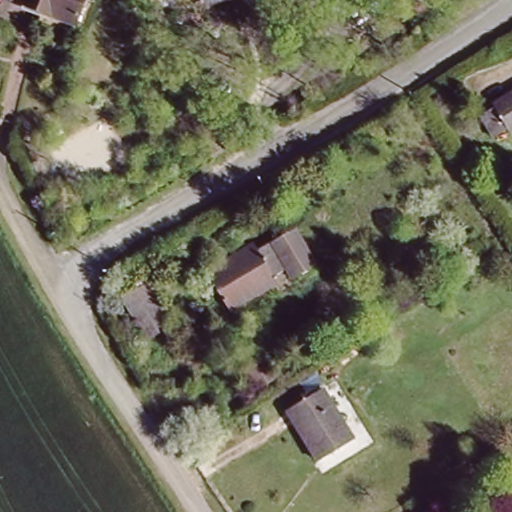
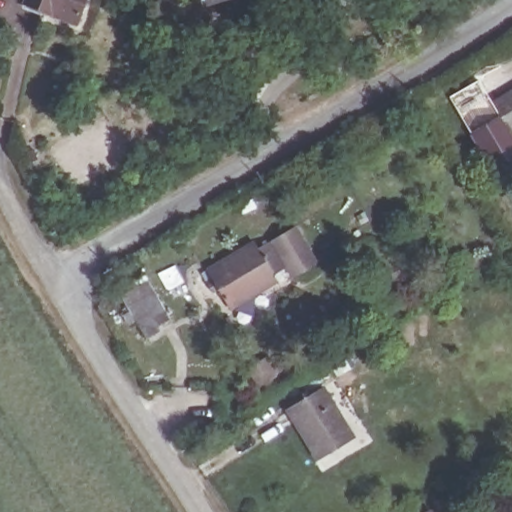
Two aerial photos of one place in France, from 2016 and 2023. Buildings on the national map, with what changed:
unchanged [(77,21),(27,3),(28,0),(86,0),(77,21)]
unchanged [(207,0),(218,0),(207,3),(207,0)]
unchanged [(505,100),(504,98),(512,93),(512,128),(502,134),(489,108),(505,100)]
unchanged [(200,272),(248,245),(251,250),(289,230),(310,269),(285,282),(279,269),(265,277),(272,288),(224,313),(200,272)]
unchanged [(143,335),(164,324),(177,346),(169,350),(174,359),(161,366),(143,335)]
unchanged [(252,367),(270,356),(280,373),(262,384),(252,367)]
unchanged [(288,411),(325,389),(355,441),(317,463),(288,411)]

